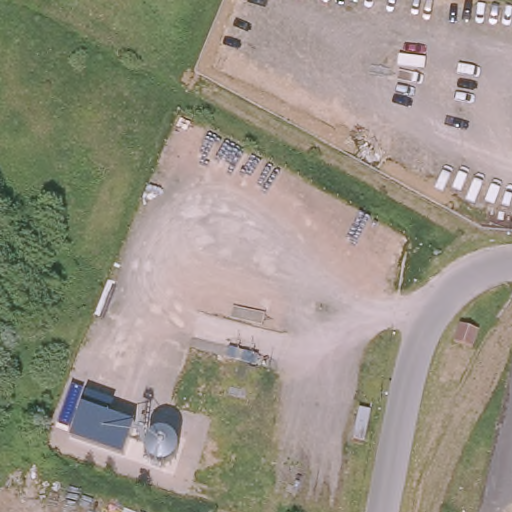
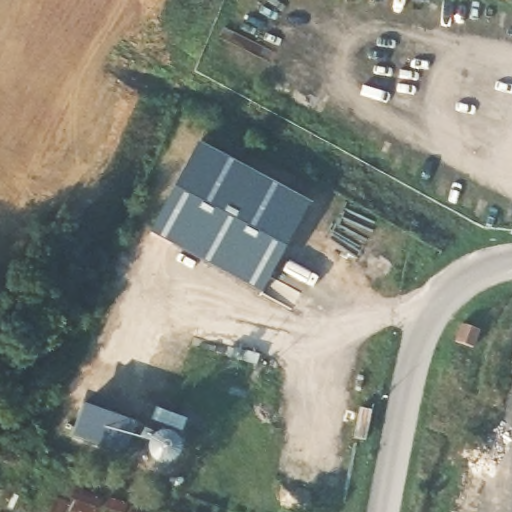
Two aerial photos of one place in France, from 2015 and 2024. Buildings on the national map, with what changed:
new [(262,293),(150,232),(198,142),(310,202),(262,293)]
unchanged [(478,331),(472,348),(454,342),(460,325),(478,331)]
unchanged [(113,402),(109,413),(135,424),(135,427),(149,432),(157,430),(169,429),(177,434),(182,443),(181,452),(177,462),(165,465),(156,463),(149,454),(147,447),(130,441),(124,460),(70,438),(85,392),(113,402)]

